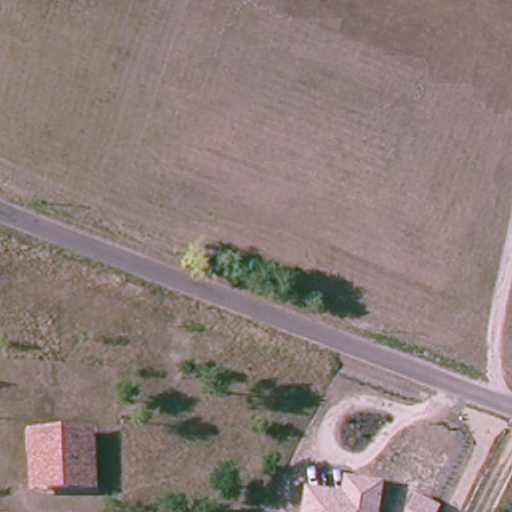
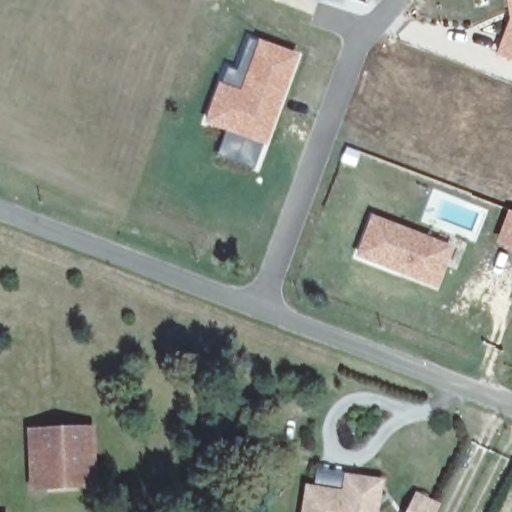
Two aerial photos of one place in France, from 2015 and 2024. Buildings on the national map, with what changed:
new [(512,0),(512,14),(509,0),(512,0)]
new [(512,18),(512,54),(500,49),(512,18)]
new [(217,157),(226,132),(204,124),(225,66),(238,71),(249,37),(299,55),(266,146),(263,145),(254,171),(217,157)]
new [(512,247),(495,241),(509,206),(512,207),(512,247)]
new [(453,246),(436,288),(355,258),(371,215),(453,246)]
unchanged [(29,491),(26,428),(93,426),(97,487),(29,491)]
unchanged [(343,472),(383,478),(379,512),(299,512),(303,483),(340,488),(343,472)]
unchanged [(416,491),(441,502),(436,512),(405,512),(416,491)]

